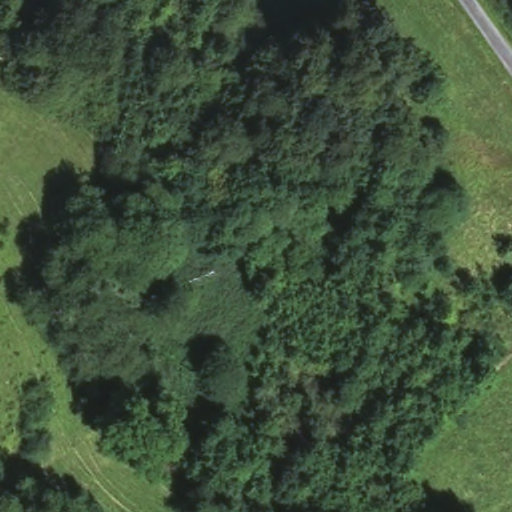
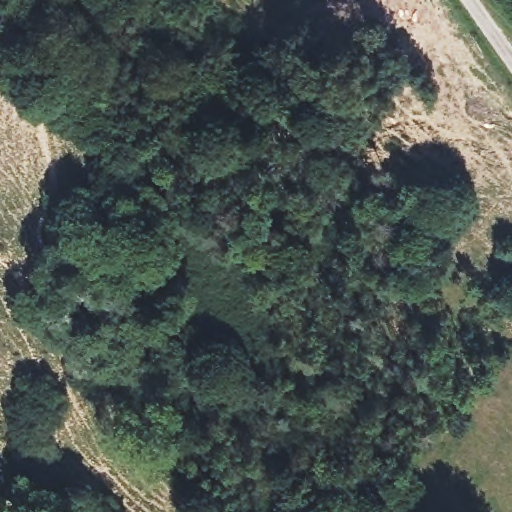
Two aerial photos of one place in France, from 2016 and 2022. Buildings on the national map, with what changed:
[]

